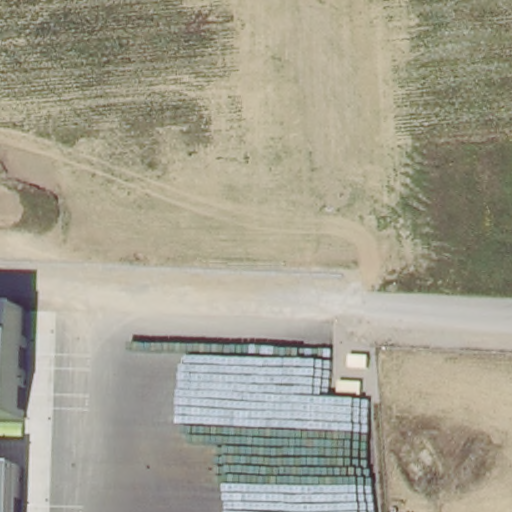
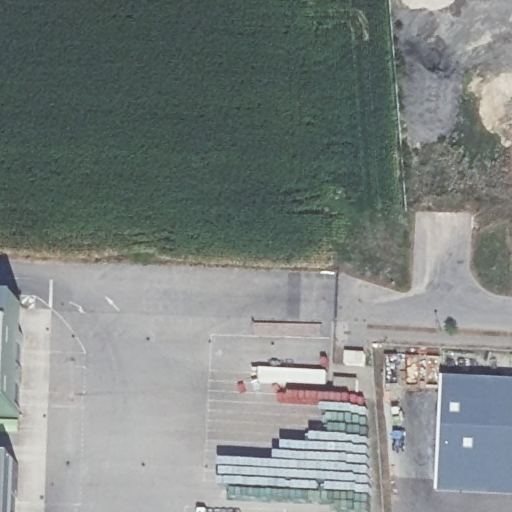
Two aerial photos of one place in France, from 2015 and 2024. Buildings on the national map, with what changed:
unchanged [(21,420),(0,418),(0,309),(24,309),(21,420)]
new [(512,385),(512,498),(442,494),(446,382),(512,385)]
unchanged [(16,512),(0,512),(0,461),(17,461),(16,512)]

